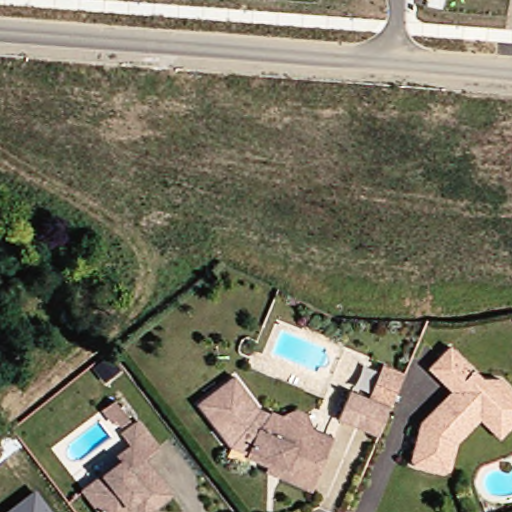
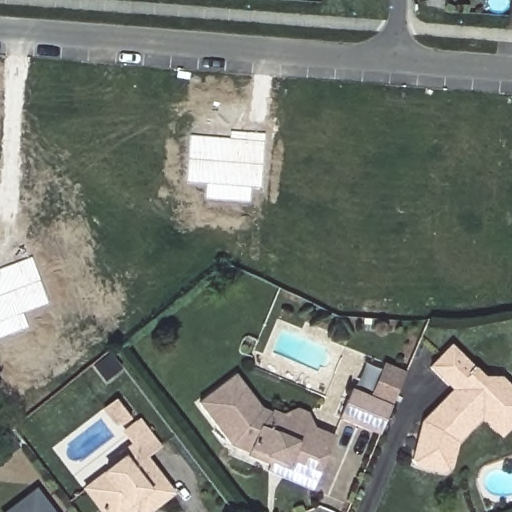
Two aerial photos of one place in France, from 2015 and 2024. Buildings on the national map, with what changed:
new [(260,188),(250,187),(249,202),(205,200),(205,184),(185,182),(189,135),(228,139),(229,130),(264,132),(260,188)]
new [(21,314),(26,328),(0,338),(0,268),(30,257),(47,305),(21,314)]
unchanged [(496,435),(475,415),(449,442),(441,471),(435,475),(406,466),(402,460),(411,428),(435,404),(445,393),(421,370),(441,349),(475,380),(492,380),(512,399),(512,419),(496,435)]
unchanged [(263,471),(266,465),(244,456),(245,455),(226,447),(194,404),(230,376),(256,410),(266,414),(267,412),(276,416),(283,430),(297,436),(293,444),(321,456),(310,485),(307,490),(263,471)]
unchanged [(332,420),(344,392),(381,408),(378,417),(370,435),(332,420)]
unchanged [(120,424),(119,425),(114,419),(110,422),(100,409),(111,400),(126,420),(120,424)]
unchanged [(321,456),(293,444),(297,436),(283,430),(276,416),(292,410),(302,414),(310,430),(330,438),(321,456)]
unchanged [(117,461),(114,456),(129,445),(120,433),(135,422),(154,447),(140,458),(167,495),(149,508),(144,512),(135,512),(132,509),(129,512),(96,512),(80,490),(117,461)]
unchanged [(5,512),(35,490),(52,512),(5,512)]

